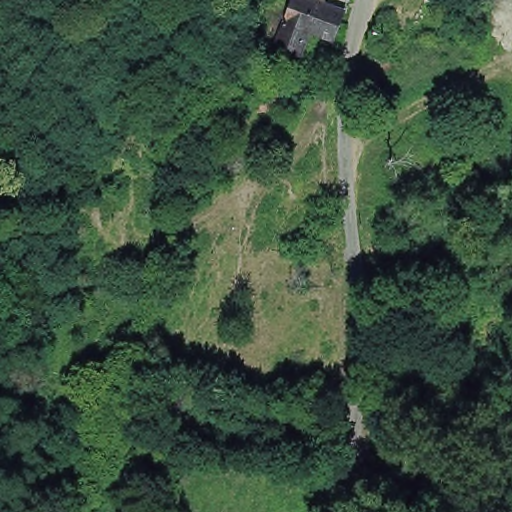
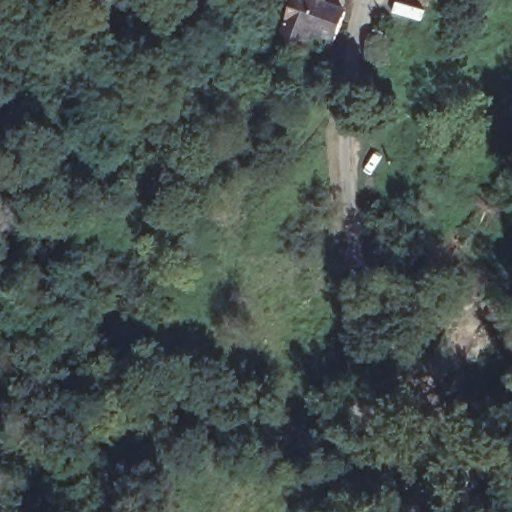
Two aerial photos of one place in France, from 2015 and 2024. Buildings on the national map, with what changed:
unchanged [(290,14),(295,0),(324,0),(349,10),(340,38),(314,29),(305,53),(280,44),(268,40),(273,8),(290,14)]
unchanged [(254,94),(277,91),(278,104),(278,106),(250,109),(248,95),(254,94)]
unchanged [(200,405),(202,393),(223,395),(222,408),(200,405)]

